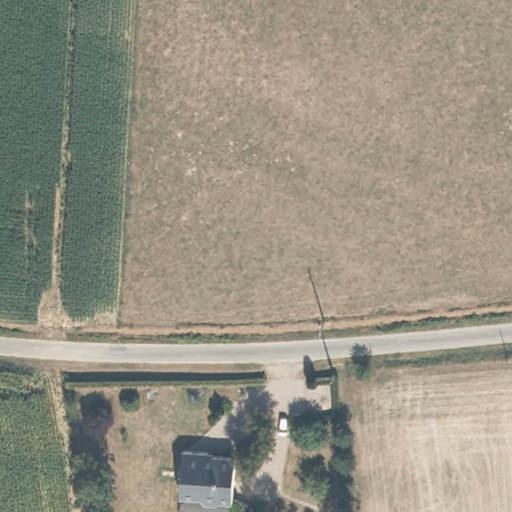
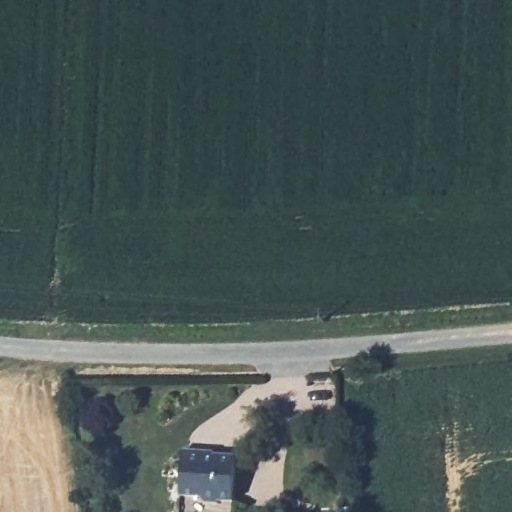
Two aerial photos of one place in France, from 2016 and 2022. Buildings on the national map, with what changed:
unchanged [(212,452),(212,456),(237,458),(234,505),(221,505),(221,507),(206,506),(206,501),(182,499),(185,451),(212,452)]

